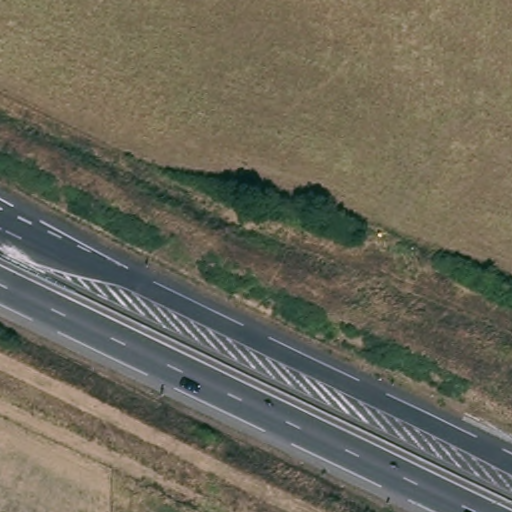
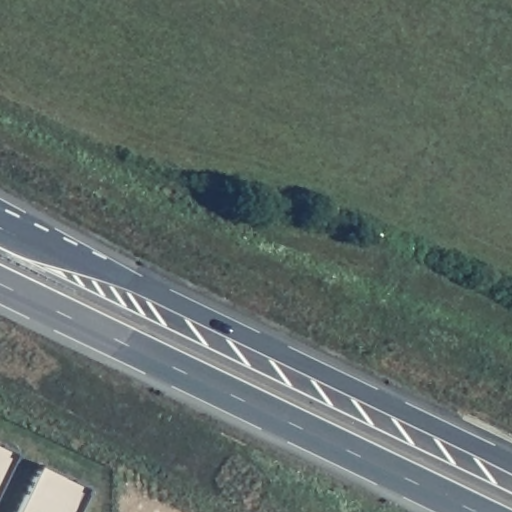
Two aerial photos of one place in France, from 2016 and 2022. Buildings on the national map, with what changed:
new [(17,456),(0,491),(0,449),(17,456)]
new [(89,491),(79,512),(17,512),(39,467),(89,491)]

